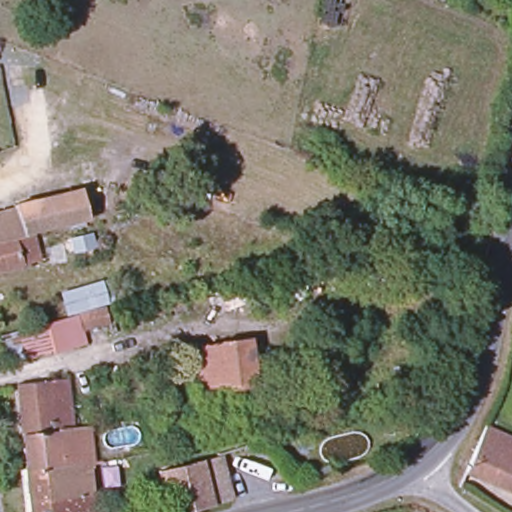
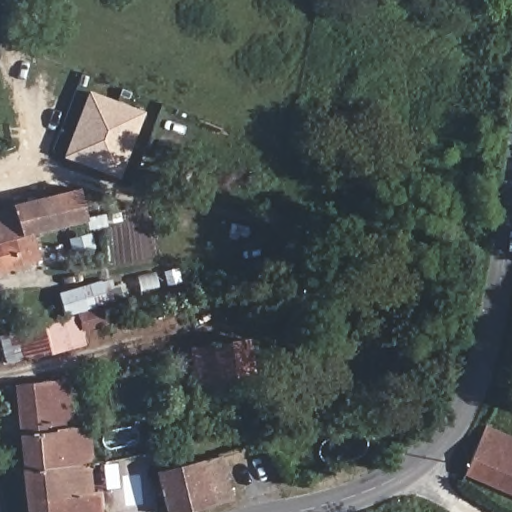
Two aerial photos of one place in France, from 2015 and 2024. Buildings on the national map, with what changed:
new [(120,178),(65,157),(90,90),(144,113),(120,178)]
unchanged [(81,196),(90,226),(23,243),(14,213),(81,196)]
unchanged [(23,243),(0,249),(0,216),(14,213),(23,243)]
unchanged [(30,267),(0,275),(0,249),(23,243),(30,267)]
unchanged [(56,294),(108,281),(115,310),(64,324),(56,294)]
unchanged [(187,296),(152,305),(148,292),(183,283),(187,296)]
unchanged [(218,299),(237,292),(243,308),(224,317),(218,299)]
unchanged [(109,332),(82,339),(85,349),(29,362),(23,339),(104,319),(109,332)]
unchanged [(251,390),(202,401),(192,356),(240,344),(251,390)]
unchanged [(79,466),(21,473),(14,388),(64,383),(74,457),(92,456),(93,465),(79,466)]
unchanged [(462,475),(483,430),(512,444),(512,500),(462,475)]
unchanged [(165,512),(158,478),(214,463),(227,505),(200,512),(165,512)]
unchanged [(95,497),(97,512),(24,512),(21,473),(79,466),(83,498),(95,497)]

